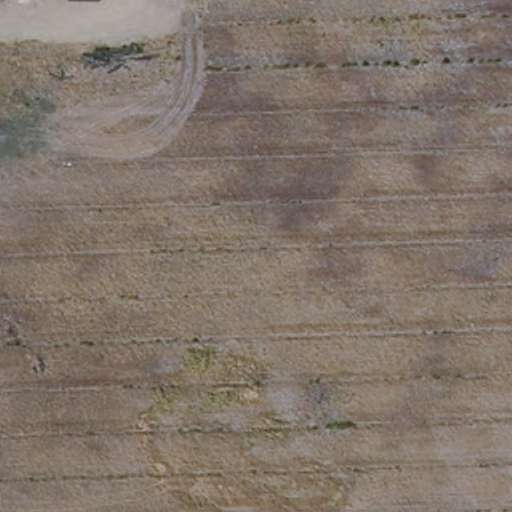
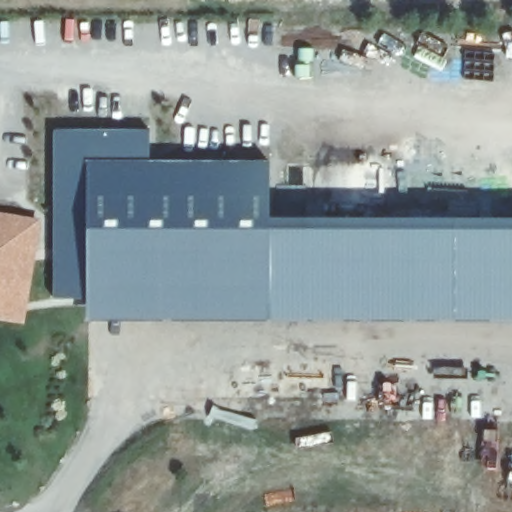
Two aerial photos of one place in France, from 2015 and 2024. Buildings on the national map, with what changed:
new [(57,139),(89,140),(89,308),(56,308),(57,139)]
new [(152,172),(272,171),(273,226),(309,225),(309,213),(326,213),(326,226),(512,225),(512,307),(89,308),(89,140),(152,139),(152,172)]
new [(37,228),(24,308),(0,304),(0,222),(37,228)]
new [(24,308),(22,323),(0,319),(0,304),(24,308)]

